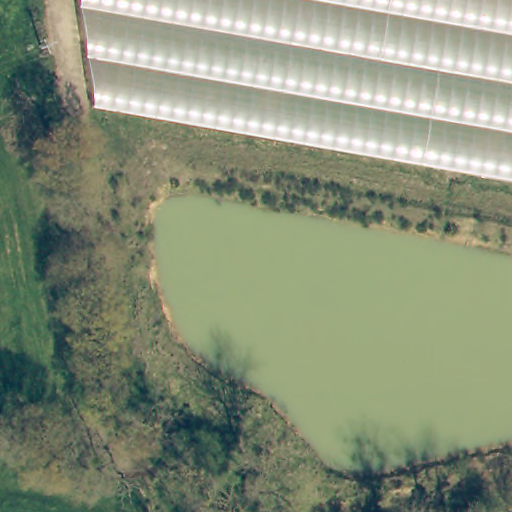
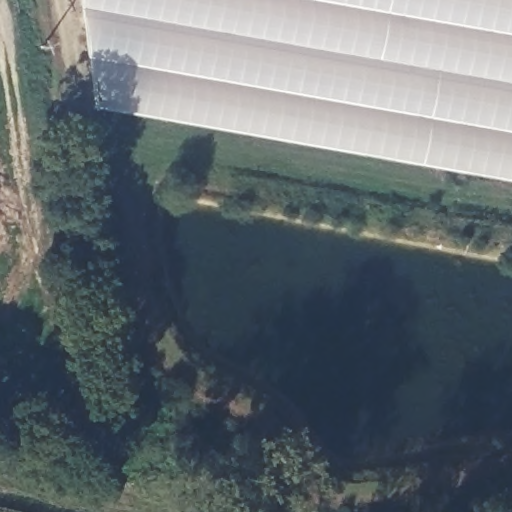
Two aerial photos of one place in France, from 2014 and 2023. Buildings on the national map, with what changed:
unchanged [(95,107),(80,0),(512,0),(512,182),(95,107)]

